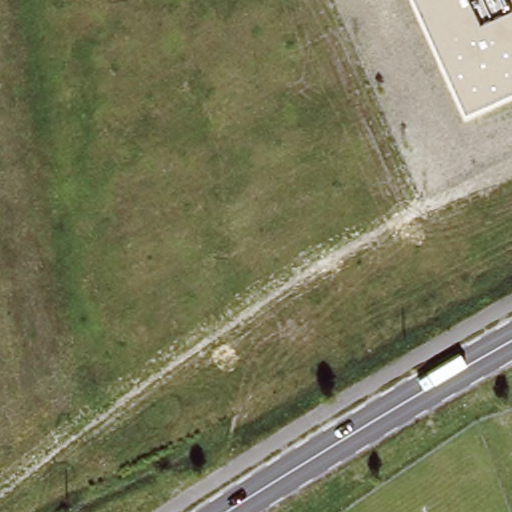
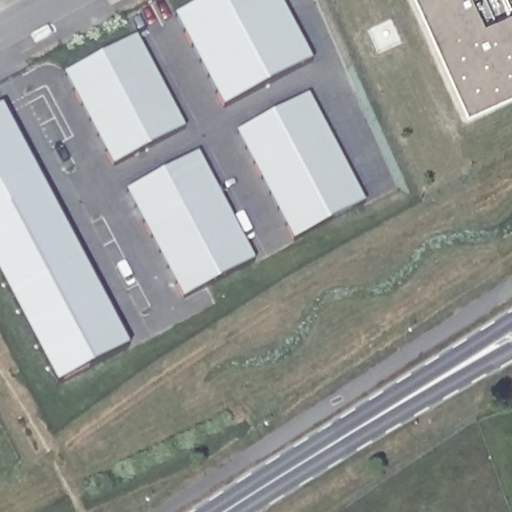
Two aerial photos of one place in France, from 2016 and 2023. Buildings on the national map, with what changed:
new [(223,110),(175,17),(206,0),(282,0),(315,62),(223,110)]
unchanged [(417,0),(512,0),(512,94),(469,113),(417,0)]
new [(114,168),(65,75),(137,36),(187,128),(114,168)]
new [(294,241),(238,133),(310,94),(367,202),(294,241)]
new [(57,386),(0,277),(0,108),(2,107),(130,347),(57,386)]
new [(184,301),(127,191),(200,151),(257,260),(184,301)]

